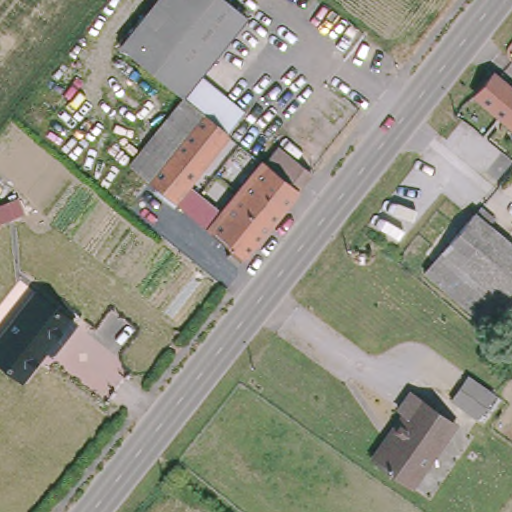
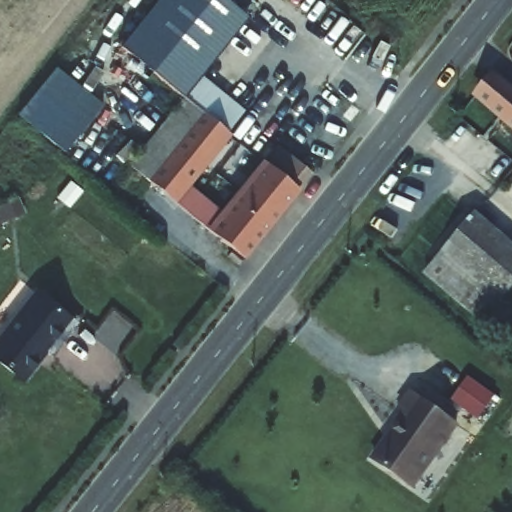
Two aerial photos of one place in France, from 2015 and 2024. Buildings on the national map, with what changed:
unchanged [(119,45),(156,0),(227,0),(249,18),(202,76),(245,110),(227,133),(231,136),(177,203),(130,166),(182,97),(119,45)]
new [(55,67),(102,105),(64,152),(17,115),(55,67)]
unchanged [(512,81),(512,129),(480,102),(504,75),(512,81)]
unchanged [(223,250),(230,239),(198,212),(210,192),(225,202),(273,142),(310,171),(238,262),(223,250)]
unchanged [(475,212),(512,244),(512,290),(482,325),(425,273),(475,212)]
unchanged [(52,357),(47,354),(22,384),(0,365),(0,335),(35,290),(78,322),(52,357)]
unchanged [(469,417),(442,397),(458,375),(485,394),(469,417)]
unchanged [(413,488),(373,461),(405,420),(397,413),(413,392),(460,427),(413,488)]

